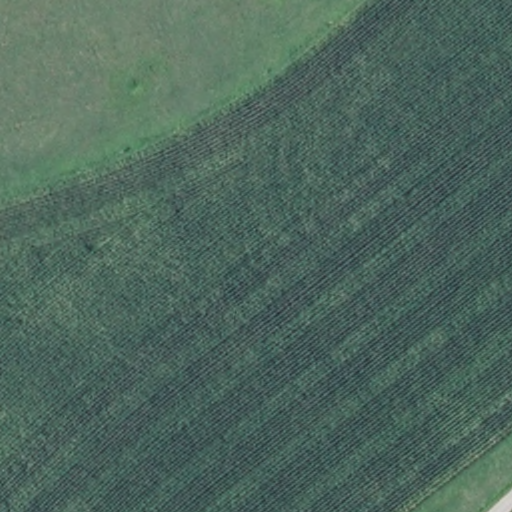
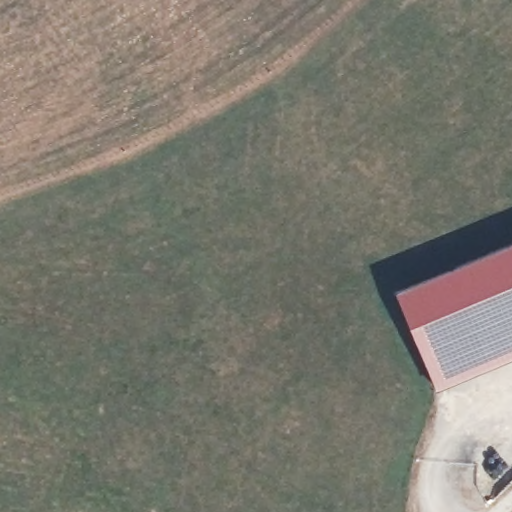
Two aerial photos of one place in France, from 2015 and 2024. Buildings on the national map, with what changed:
new [(397,290),(512,242),(512,359),(438,390),(397,290)]

